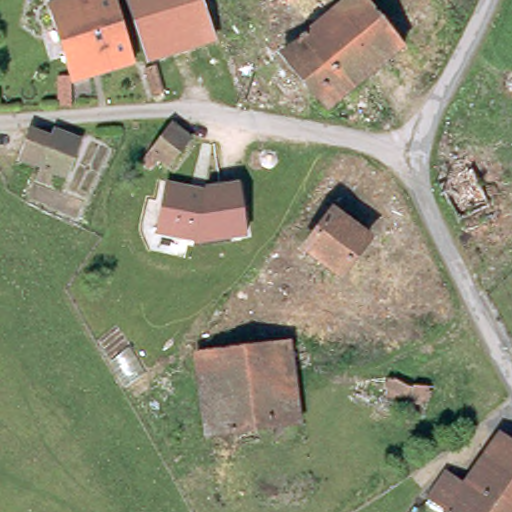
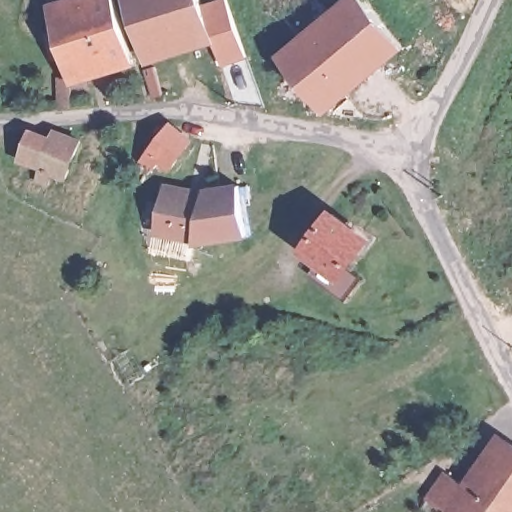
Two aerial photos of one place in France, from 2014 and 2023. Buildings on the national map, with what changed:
unchanged [(54,0),(115,0),(139,65),(77,84),(75,105),(62,104),(65,79),(75,79),(54,0)]
unchanged [(129,0),(199,0),(215,44),(154,63),(165,92),(154,96),(144,66),(151,63),(129,0)]
unchanged [(320,11),(312,0),(346,0),(347,3),(350,0),(364,0),(404,49),(329,110),(304,79),(282,54),(302,39),(330,16),(320,11)]
unchanged [(219,76),(210,48),(222,42),(233,71),(219,76)]
unchanged [(191,136),(160,172),(140,157),(171,120),(191,136)]
unchanged [(52,137),(57,130),(82,141),(67,174),(56,170),(52,180),(37,173),(34,181),(15,172),(34,129),(52,137)]
unchanged [(239,180),(240,185),(246,227),(197,235),(192,236),(192,233),(187,232),(156,226),(159,212),(165,180),(190,185),(206,187),(205,185),(239,180)]
unchanged [(367,242),(340,277),(305,251),(332,217),(367,242)]
demolished [(289,337),(300,422),(206,433),(194,350),(289,337)]
unchanged [(487,453),(502,433),(512,441),(512,470),(487,453)]
unchanged [(512,470),(512,512),(445,512),(447,509),(427,495),(445,470),(464,483),(487,453),(512,470)]

